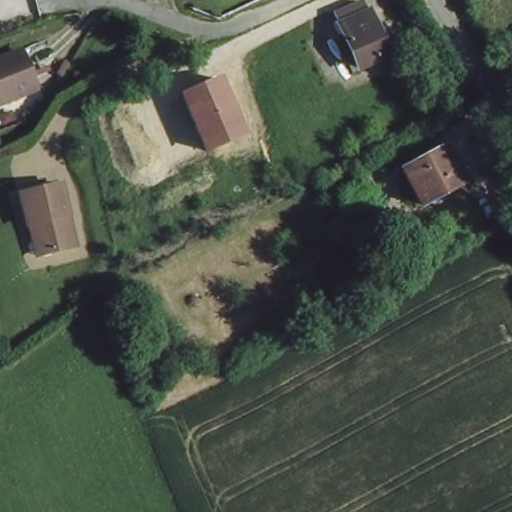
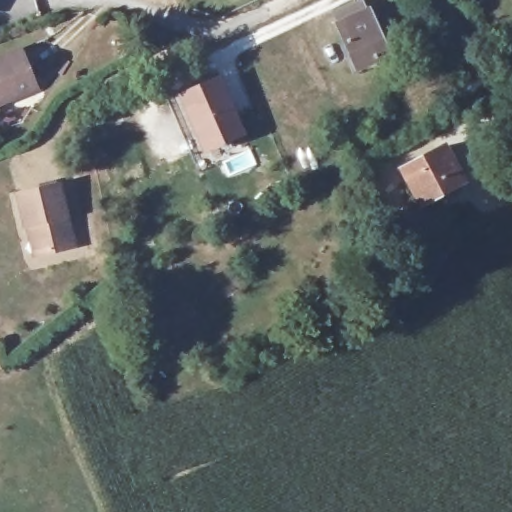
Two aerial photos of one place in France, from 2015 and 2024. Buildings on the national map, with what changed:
unchanged [(364,18),(370,15),(388,56),(359,69),(336,17),(359,8),(364,18)]
unchanged [(18,52),(27,74),(34,90),(0,104),(0,60),(18,52)]
unchanged [(220,75),(246,137),(204,153),(178,94),(220,75)]
unchanged [(460,184),(418,206),(399,171),(442,149),(460,184)]
unchanged [(22,226),(15,195),(55,185),(69,247),(36,255),(28,257),(22,226)]

